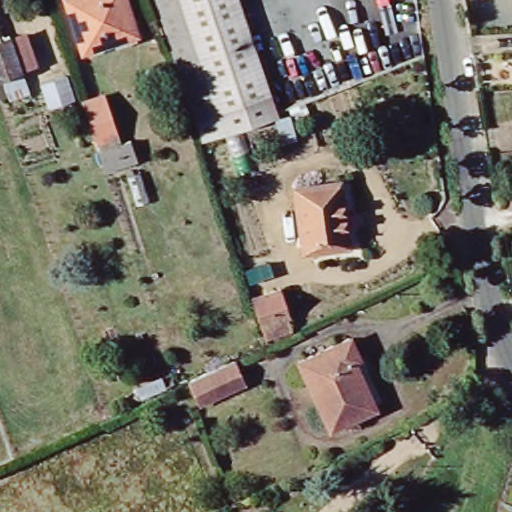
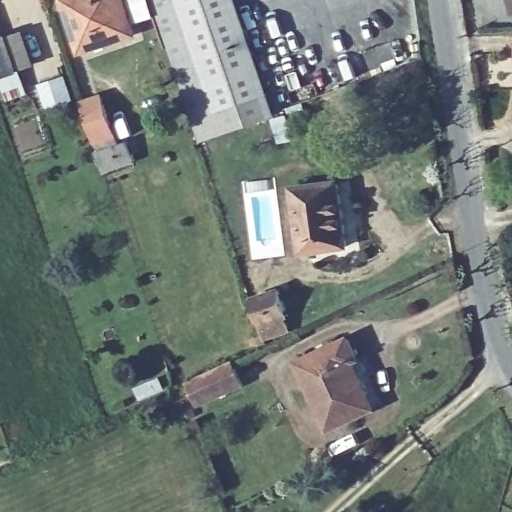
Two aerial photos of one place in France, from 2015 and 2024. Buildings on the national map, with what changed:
unchanged [(68,0),(123,0),(134,31),(84,47),(68,0)]
unchanged [(151,0),(182,0),(227,130),(199,140),(151,0)]
unchanged [(242,0),(278,112),(288,108),(298,137),(282,143),(272,116),(227,130),(182,0),(242,0)]
unchanged [(17,70),(0,76),(0,37),(5,35),(17,70)]
unchanged [(104,99),(117,138),(100,144),(87,105),(104,99)]
unchanged [(127,143),(133,161),(107,170),(101,152),(127,143)]
unchanged [(299,187),(342,183),(348,246),(305,250),(299,187)]
unchanged [(286,318),(262,326),(253,302),(277,294),(286,318)]
unchanged [(357,360),(377,406),(331,426),(302,358),(351,336),(361,358),(357,360)]
unchanged [(203,403),(192,379),(236,359),(247,383),(203,403)]

